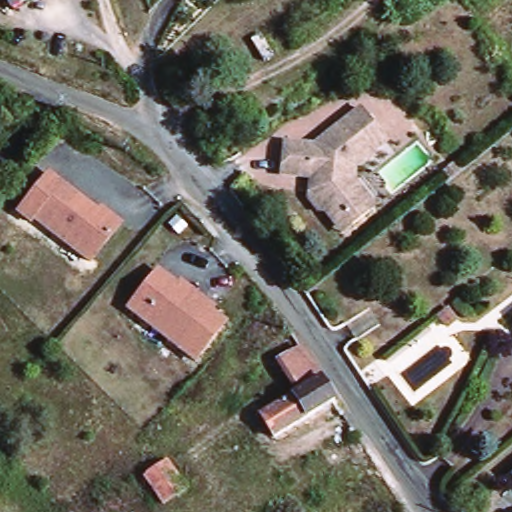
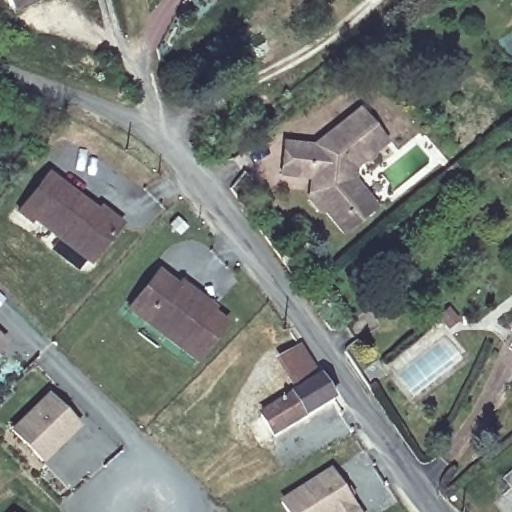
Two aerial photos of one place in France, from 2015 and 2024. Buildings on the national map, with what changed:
unchanged [(30,0),(19,5),(17,0),(30,0)]
unchanged [(340,209),(330,208),(319,197),(319,191),(320,175),(295,171),(297,139),(325,143),(374,104),(399,137),(386,146),(389,151),(379,158),(378,155),(364,164),(364,172),(389,205),(367,223),(357,231),(340,209)]
unchanged [(43,215),(39,221),(26,211),(58,169),(106,210),(109,204),(129,220),(99,259),(43,215)]
unchanged [(166,267),(185,282),(189,277),(205,289),(224,304),(220,308),(234,319),(204,358),(136,305),(166,267)]
new [(0,348),(0,342),(3,345),(0,348)]
unchanged [(274,421),(303,400),(305,396),(309,394),(288,362),(310,346),(330,380),(344,402),(319,420),(288,441),(274,421)]
new [(46,394),(75,425),(39,460),(9,430),(46,394)]
new [(329,472),(354,512),(285,512),(280,504),(329,472)]

